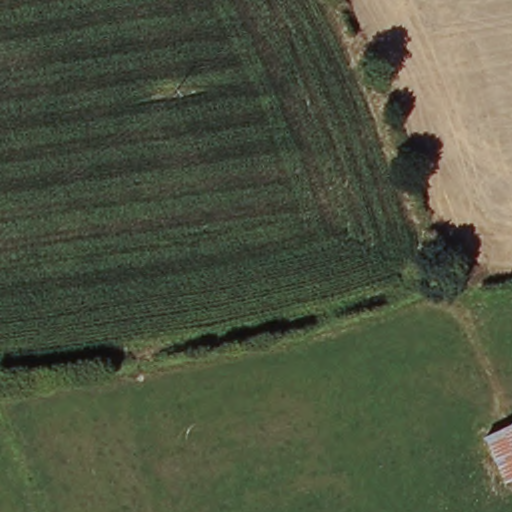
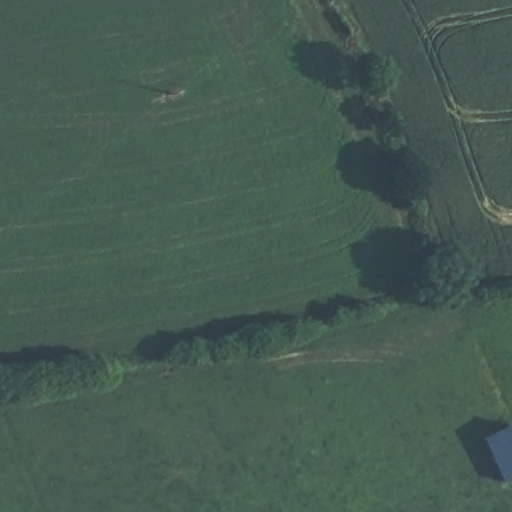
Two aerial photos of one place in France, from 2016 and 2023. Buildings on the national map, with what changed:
unchanged [(512,480),(505,483),(490,444),(512,434),(512,480)]

